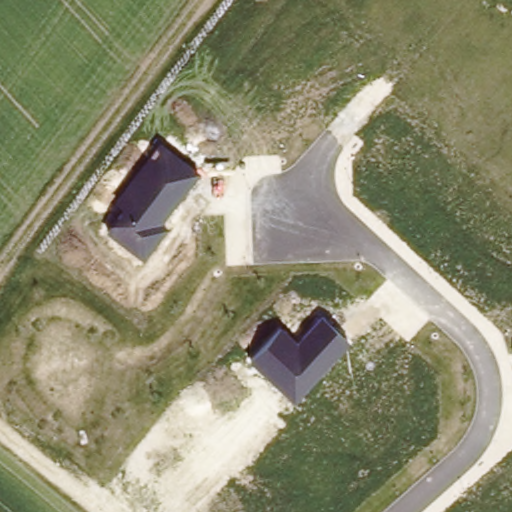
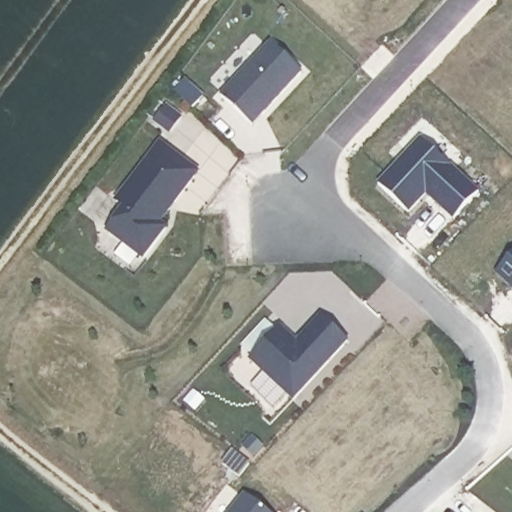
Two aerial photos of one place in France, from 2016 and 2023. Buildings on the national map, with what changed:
new [(222,95),(271,43),(305,73),(255,126),(222,95)]
new [(411,213),(380,184),(421,138),(480,191),(455,221),(427,195),(411,213)]
unchanged [(106,231),(122,210),(115,203),(161,142),(201,172),(163,222),(169,227),(143,260),(106,231)]
new [(498,273),(512,258),(512,287),(498,273)]
unchanged [(249,360),(280,327),(296,340),(320,314),(350,342),(294,401),(249,360)]
new [(246,494),(268,512),(233,512),(246,494)]

